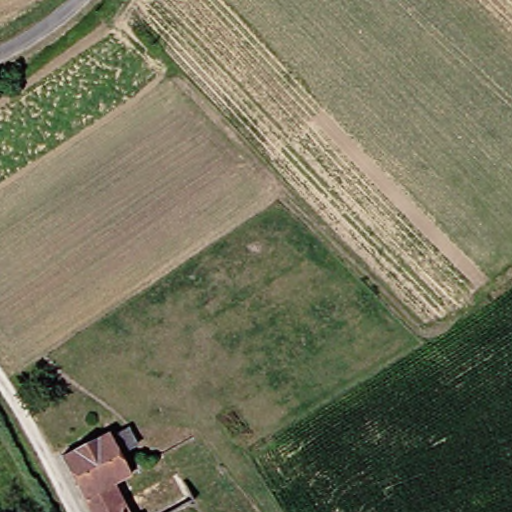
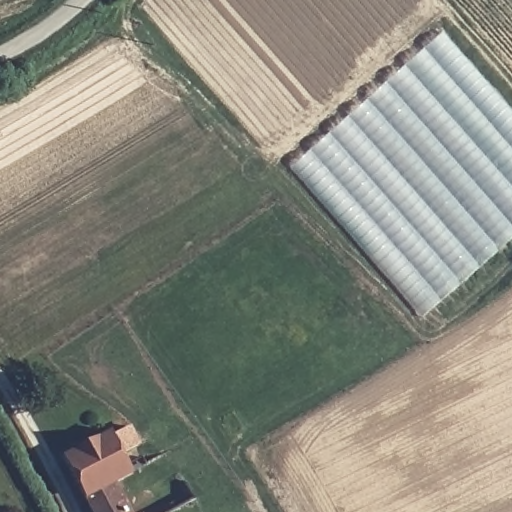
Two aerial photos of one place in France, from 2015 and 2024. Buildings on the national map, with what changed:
new [(291,166),(442,31),(512,112),(512,240),(422,317),(291,166)]
unchanged [(120,431),(122,436),(140,427),(148,445),(131,453),(141,473),(125,482),(140,512),(102,512),(73,455),(120,431)]

